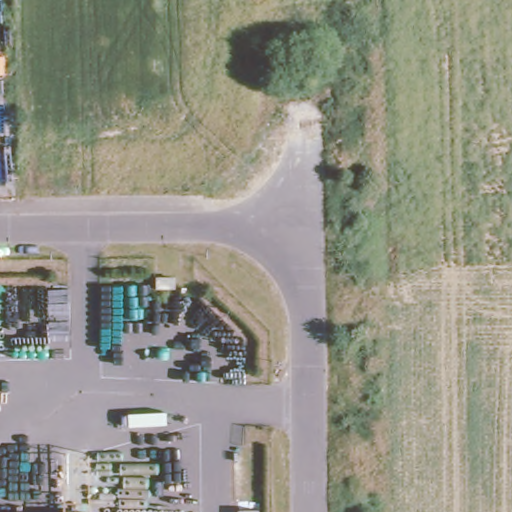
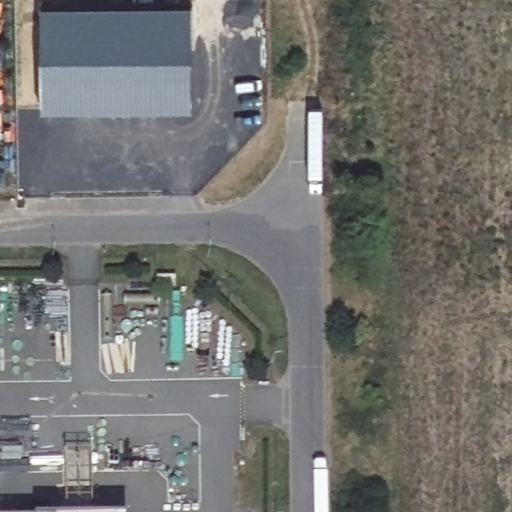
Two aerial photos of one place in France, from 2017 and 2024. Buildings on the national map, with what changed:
new [(193,110),(43,110),(42,6),(193,5),(193,110)]
unchanged [(176,275),(176,288),(156,288),(156,275),(176,275)]

